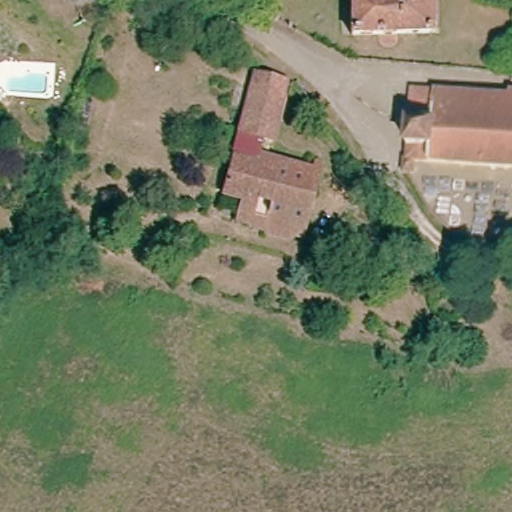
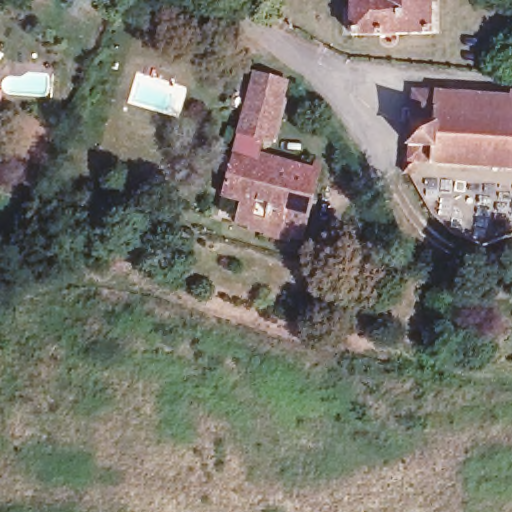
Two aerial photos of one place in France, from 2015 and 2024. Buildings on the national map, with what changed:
unchanged [(357,37),(356,0),(435,0),(435,39),(357,37)]
unchanged [(292,87),(271,164),(316,176),(297,245),(245,231),(241,226),(245,210),(225,202),(235,164),(240,165),(249,139),(244,137),(255,98),(261,76),(292,87)]
unchanged [(422,176),(407,174),(407,157),(415,157),(416,143),(410,142),(410,130),(417,130),(418,123),(410,122),(410,110),(421,110),(423,93),(512,99),(512,171),(430,164),(422,176)]

